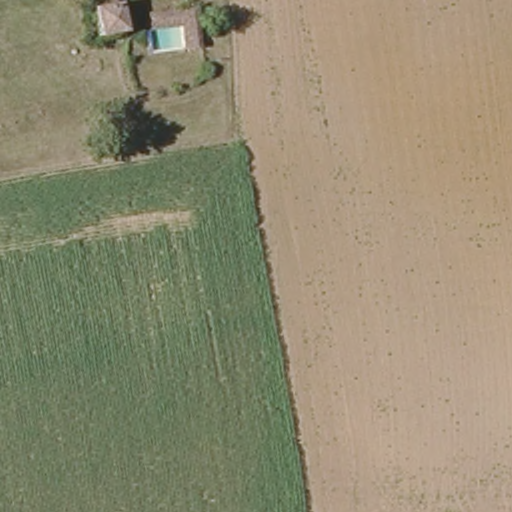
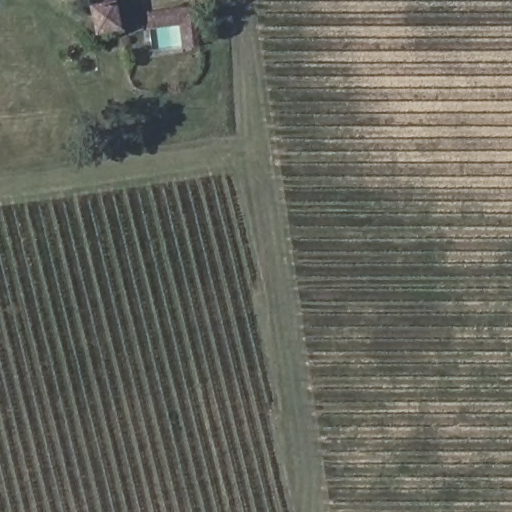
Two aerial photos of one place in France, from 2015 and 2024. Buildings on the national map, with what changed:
unchanged [(120,37),(97,42),(91,13),(100,10),(99,6),(115,1),(120,37)]

